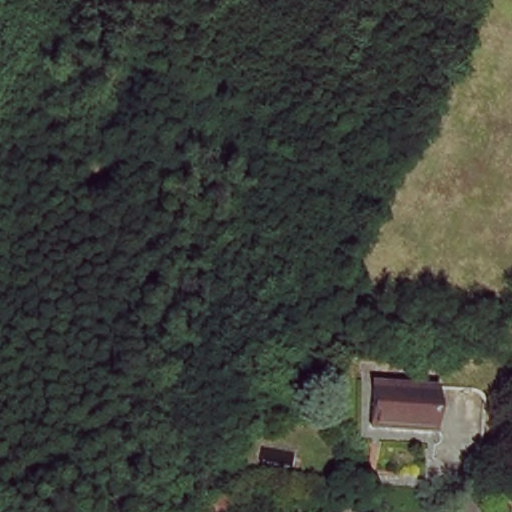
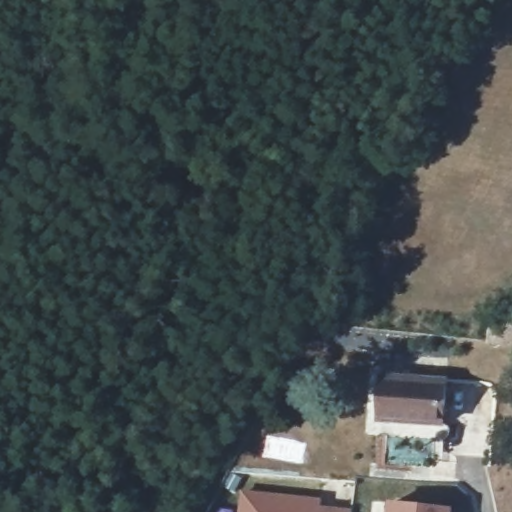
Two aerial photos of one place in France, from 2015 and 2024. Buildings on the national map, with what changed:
unchanged [(492,326),(512,321),(512,343),(490,341),(492,326)]
unchanged [(453,378),(450,421),(384,417),(387,373),(453,378)]
new [(324,499),(324,508),(354,511),(354,512),(240,512),(243,492),(324,499)]
new [(453,509),(453,512),(389,512),(390,503),(453,509)]

